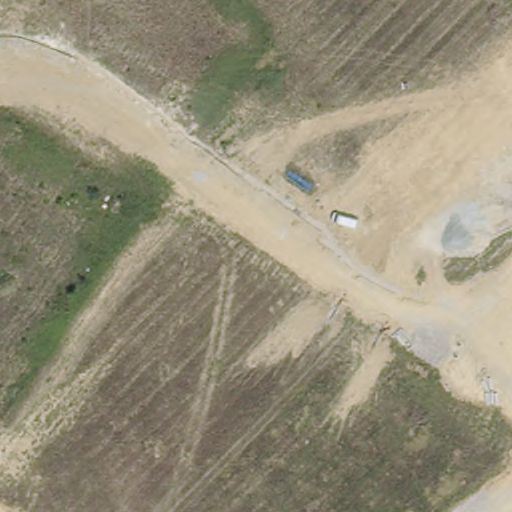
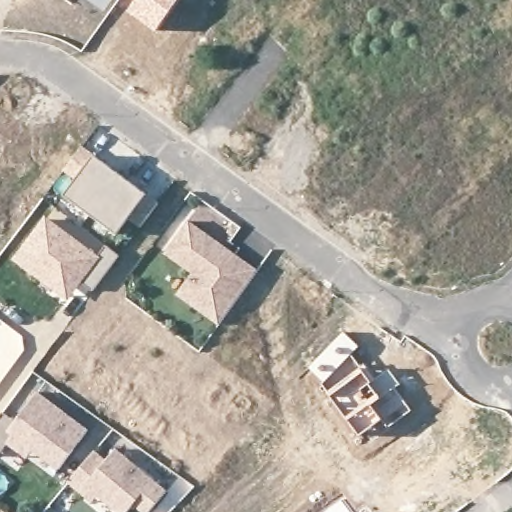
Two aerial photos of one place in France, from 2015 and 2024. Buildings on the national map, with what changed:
new [(127,9),(133,0),(181,0),(158,31),(127,9)]
new [(138,223),(130,217),(117,233),(65,194),(76,179),(63,169),(81,144),(95,154),(147,194),(158,203),(138,223)]
new [(46,214),(64,227),(101,256),(76,291),(68,300),(12,259),(46,214)]
new [(257,269),(219,324),(177,294),(192,274),(165,253),(190,220),(257,269)]
new [(345,332),(360,346),(352,354),(323,383),(310,368),(345,332)]
new [(388,425),(383,419),(361,434),(323,383),(352,354),(372,380),(390,368),(400,384),(395,389),(410,409),(388,425)]
new [(60,468),(34,449),(30,458),(8,443),(0,455),(0,415),(1,413),(16,424),(38,392),(89,429),(60,468)]
new [(107,459),(117,448),(167,489),(149,512),(142,512),(134,505),(129,512),(118,512),(99,496),(92,502),(70,483),(96,451),(107,459)]

